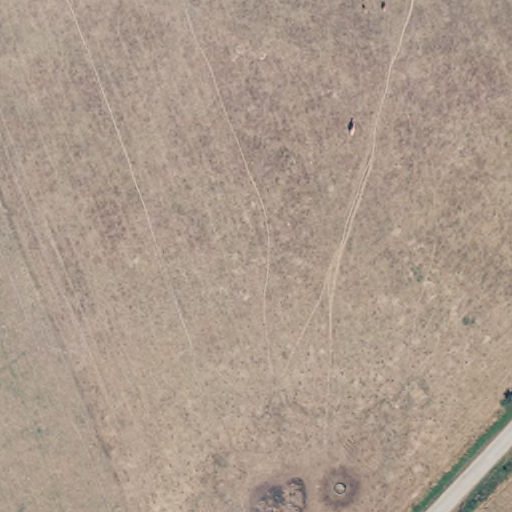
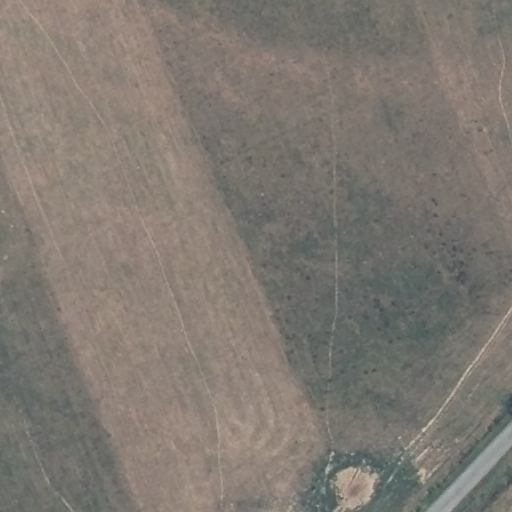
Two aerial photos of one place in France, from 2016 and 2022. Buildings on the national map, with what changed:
[]

